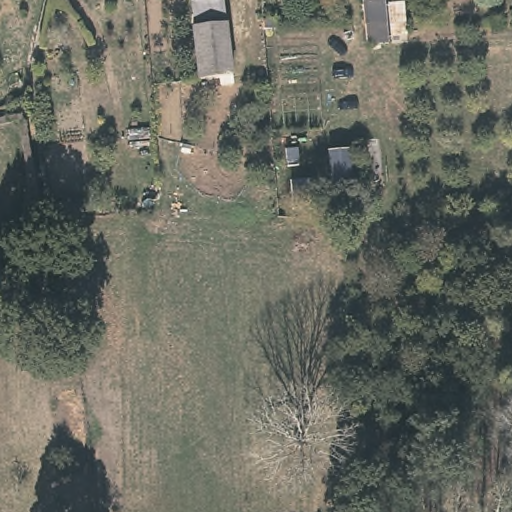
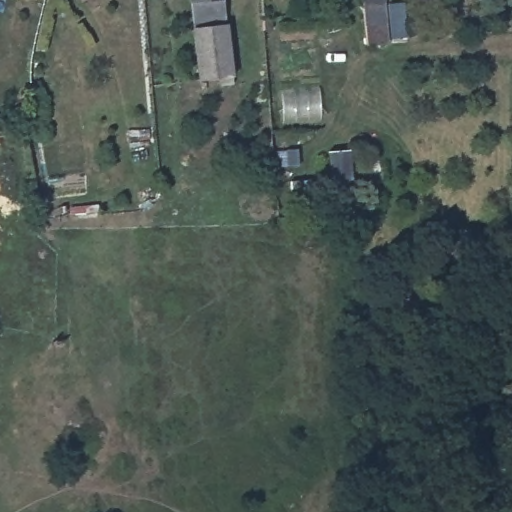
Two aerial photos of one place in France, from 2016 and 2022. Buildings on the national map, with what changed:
unchanged [(193,0),(226,0),(229,26),(197,29),(193,0)]
unchanged [(360,0),(383,0),(386,25),(387,46),(365,48),(362,27),(362,20),(360,0)]
unchanged [(398,4),(402,4),(404,28),(400,29),(389,30),(389,28),(387,5),(398,4)]
unchanged [(271,26),(262,27),(261,16),(270,15),(271,26)]
unchanged [(235,79),(202,82),(197,29),(229,26),(235,79)]
unchanged [(348,148),(350,189),(328,189),(327,149),(348,148)]

